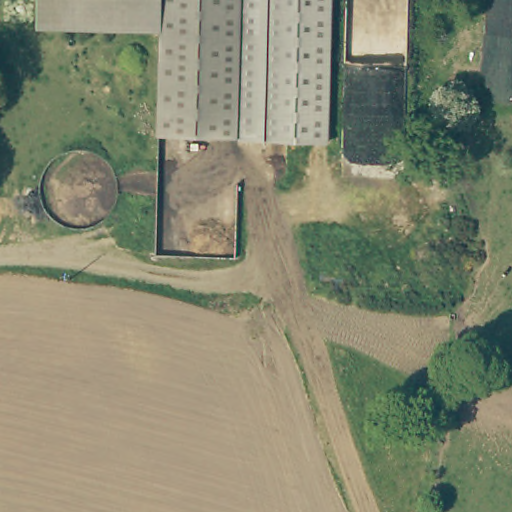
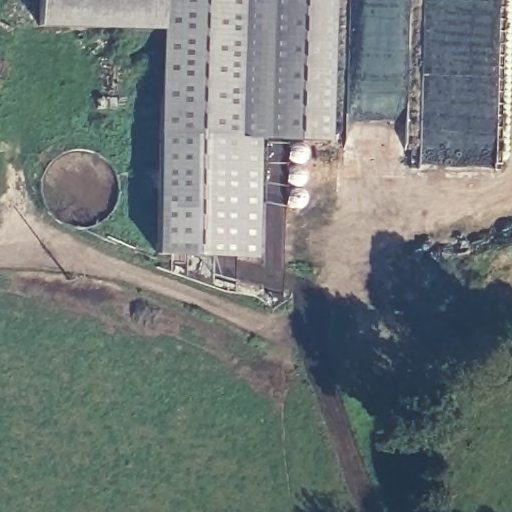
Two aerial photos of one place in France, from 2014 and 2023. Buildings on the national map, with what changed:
unchanged [(35,24),(35,0),(159,0),(159,6),(158,27),(35,24)]
unchanged [(234,134),(155,129),(158,27),(159,6),(159,0),(238,0),(234,134)]
unchanged [(329,140),(234,134),(238,0),(332,0),(329,140)]
new [(234,134),(257,136),(253,258),(154,255),(155,129),(234,134)]

